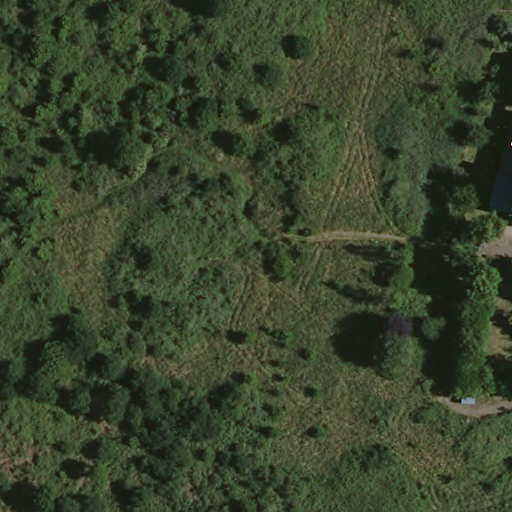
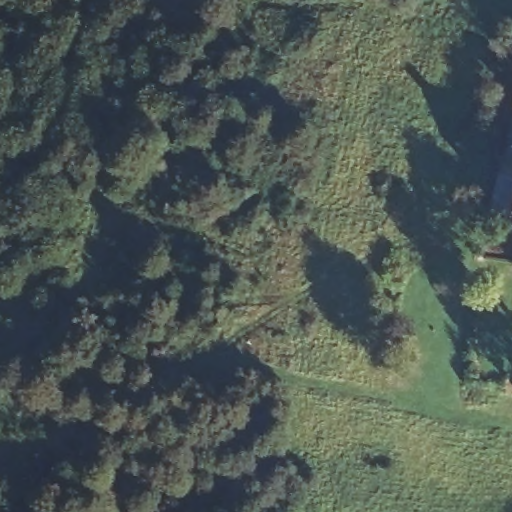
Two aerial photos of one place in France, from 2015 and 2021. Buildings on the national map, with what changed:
unchanged [(512,179),(494,174),(506,127),(512,129),(512,179)]
unchanged [(512,197),(512,221),(505,220),(512,197)]

